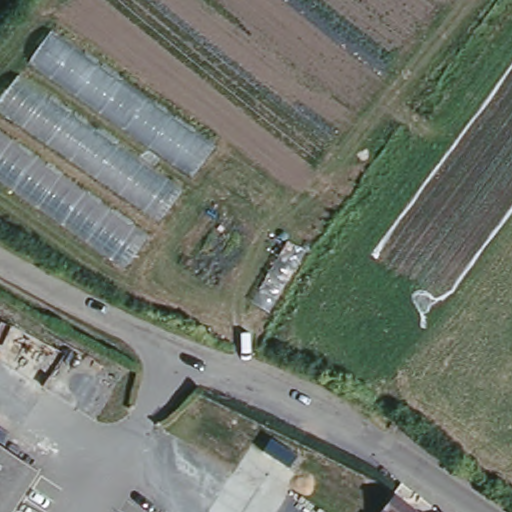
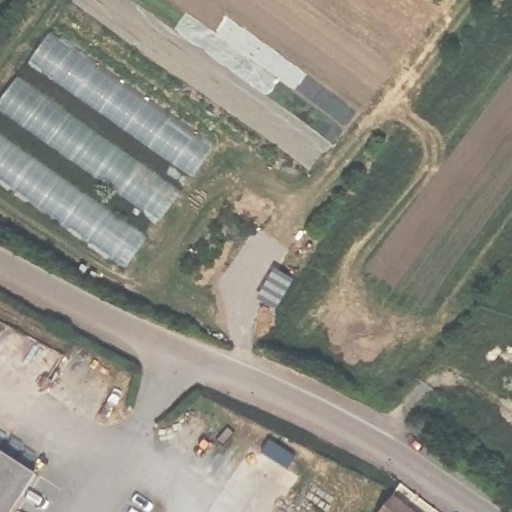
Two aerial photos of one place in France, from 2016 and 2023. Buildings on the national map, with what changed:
unchanged [(215,144),(193,179),(26,64),(50,31),(215,144)]
unchanged [(159,222),(0,115),(0,98),(18,75),(183,187),(159,222)]
unchanged [(124,270),(0,184),(0,131),(149,234),(124,270)]
unchanged [(10,512),(0,512),(0,447),(36,471),(10,512)]
unchanged [(411,512),(375,512),(389,493),(411,512)]

